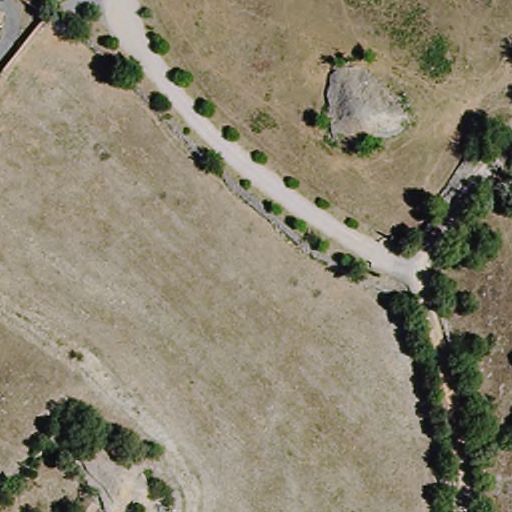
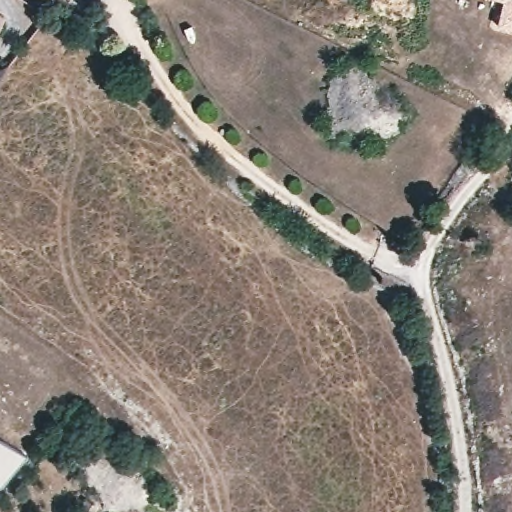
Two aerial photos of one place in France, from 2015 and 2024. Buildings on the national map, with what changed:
new [(495,25),(502,0),(501,0),(512,0),(512,31),(495,25)]
unchanged [(0,27),(0,9),(7,12),(0,27)]
new [(0,441),(27,456),(3,489),(0,487),(0,441)]

